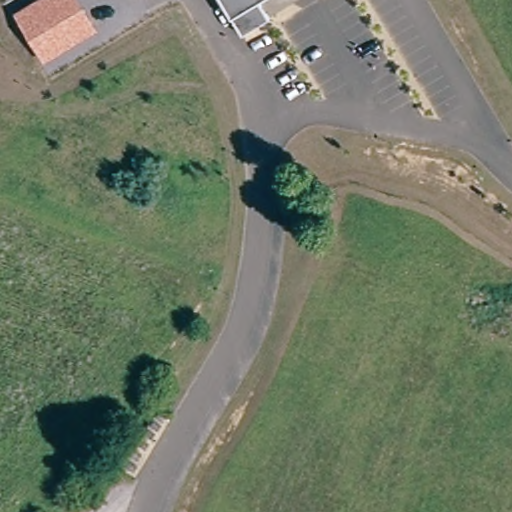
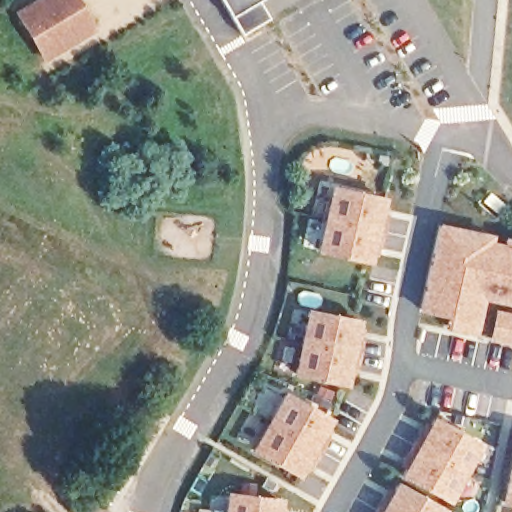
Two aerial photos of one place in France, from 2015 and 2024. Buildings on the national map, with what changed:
unchanged [(43,62),(13,11),(32,0),(80,0),(97,30),(43,62)]
unchanged [(271,22),(259,30),(255,33),(244,40),(219,0),(268,0),(260,5),(271,22)]
new [(386,221),(383,236),(327,224),(333,192),(383,203),(381,212),(387,214),(386,221)]
new [(372,256),(370,266),(320,256),(327,224),(383,236),(380,250),(378,258),(372,256)]
new [(463,234),(491,240),(490,246),(510,250),(511,244),(512,244),(512,290),(486,285),(482,304),(478,325),(476,336),(449,330),(451,320),(424,315),(441,230),(463,234)]
new [(512,290),(512,300),(509,300),(507,309),(482,304),(486,285),(512,290)]
new [(364,341),(362,356),(306,345),(312,313),(362,323),(360,333),(366,335),(364,341)]
new [(502,320),(512,321),(512,347),(497,345),(502,320)]
new [(351,377),(349,387),(300,377),(306,345),(362,356),(359,371),(357,378),(351,377)]
new [(330,441),(323,455),(273,426),(288,398),(333,423),(329,432),(334,435),(330,441)]
new [(430,427),(436,430),(440,422),(485,447),(469,475),(419,447),(427,435),(430,427)]
new [(307,471),(302,480),(258,455),(273,426),(323,455),(316,468),(312,475),(307,471)]
new [(414,470),(409,467),(412,460),(419,447),(469,475),(454,505),(410,479),(414,470)]
new [(510,495),(512,485),(512,506),(507,505),(510,495)]
new [(394,493),(400,496),(404,488),(448,512),(384,512),(391,500),(394,493)]
new [(282,501),(281,510),(287,511),(287,512),(229,512),(231,496),(282,501)]

